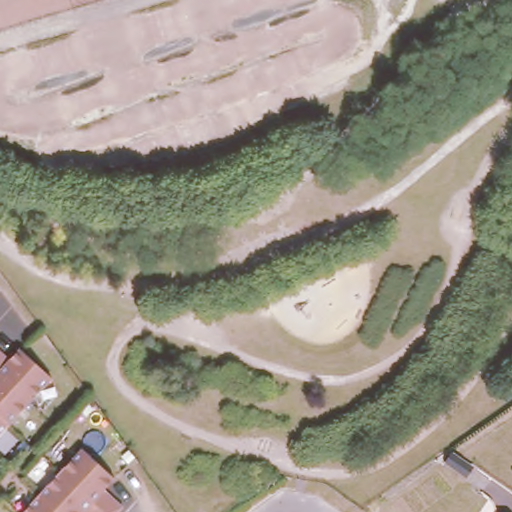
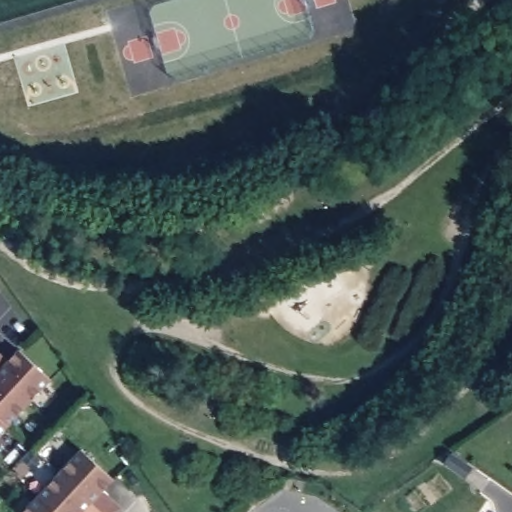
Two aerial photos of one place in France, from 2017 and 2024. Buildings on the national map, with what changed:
unchanged [(17,350),(47,377),(0,428),(0,352),(8,360),(17,350)]
unchanged [(109,471),(97,484),(117,501),(112,506),(106,512),(78,512),(75,509),(72,512),(18,512),(80,445),(109,471)]
unchanged [(457,451),(477,466),(470,476),(448,461),(457,451)]

